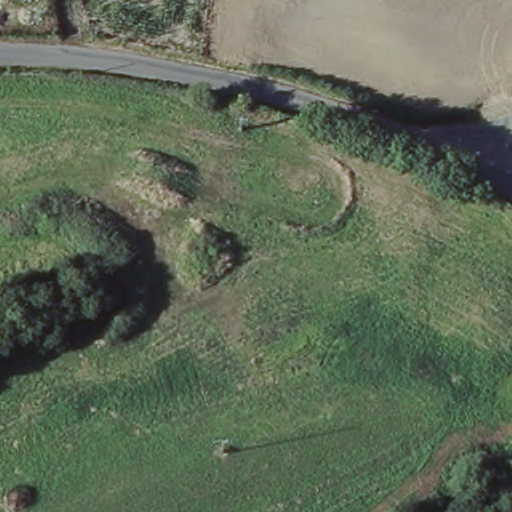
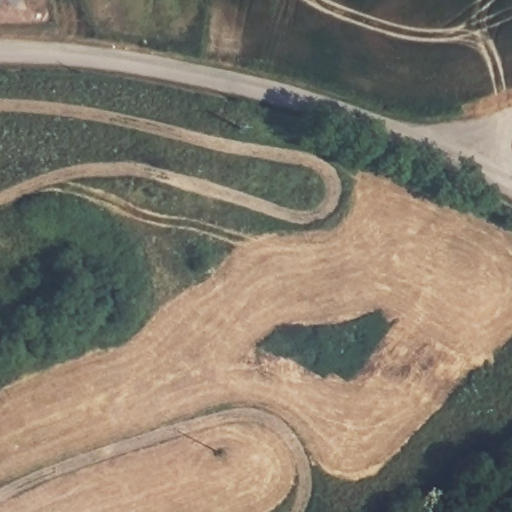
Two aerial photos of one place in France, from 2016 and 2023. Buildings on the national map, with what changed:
[]

